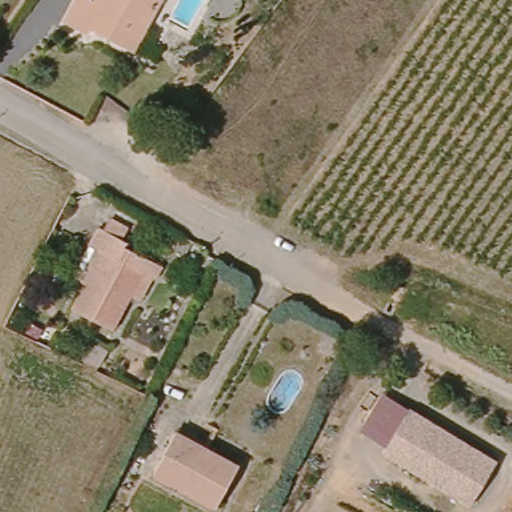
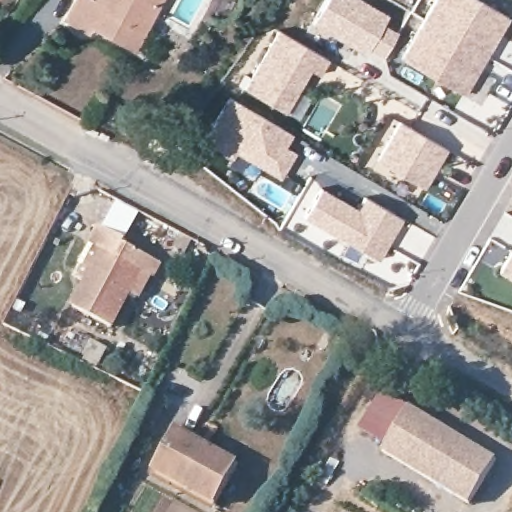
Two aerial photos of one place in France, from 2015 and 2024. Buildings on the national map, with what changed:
unchanged [(89,29),(85,36),(59,20),(70,0),(88,0),(93,3),(94,0),(158,0),(138,36),(128,52),(113,44),(89,29)]
new [(325,0),(365,0),(389,14),(384,22),(398,31),(383,57),(368,49),(366,52),(329,34),(328,37),(308,28),(325,0)]
new [(433,0),(481,0),(509,17),(463,94),(399,59),(433,0)]
new [(319,75),(309,69),(285,111),(243,87),(276,29),(329,60),(319,75)]
new [(228,95),(293,133),(286,145),(296,152),(279,177),(233,152),(229,159),(200,140),(228,95)]
new [(399,120),(447,148),(419,190),(391,172),(389,176),(371,166),(399,120)]
new [(320,186),(356,206),(363,195),(403,218),(377,261),(303,218),(320,186)]
unchanged [(80,279),(96,246),(89,242),(98,225),(105,228),(111,217),(129,226),(123,237),(128,242),(164,262),(158,277),(153,273),(144,295),(132,290),(115,324),(108,340),(69,322),(78,305),(89,282),(80,279)]
new [(512,244),(512,280),(497,272),(511,247),(512,244)]
new [(382,452),(386,444),(359,428),(384,392),(409,407),(409,405),(497,458),(469,506),(382,452)]
unchanged [(213,502),(151,472),(173,430),(235,462),(213,502)]

